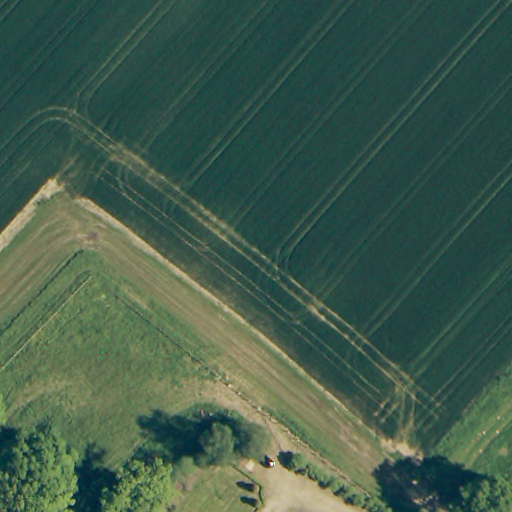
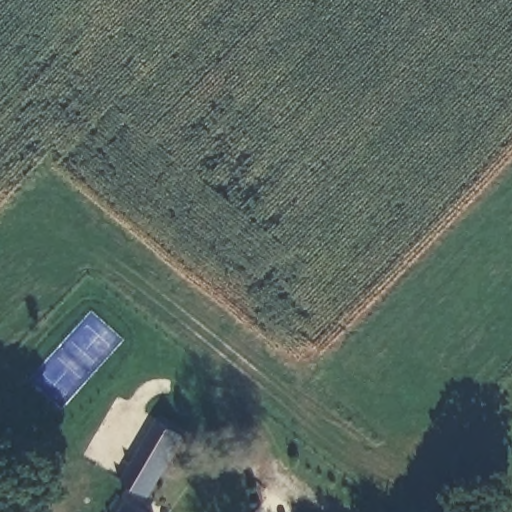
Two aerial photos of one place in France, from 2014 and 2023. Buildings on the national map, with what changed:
new [(124,481),(159,421),(187,435),(150,494),(124,481)]
demolished [(141,512),(107,512),(117,497),(141,512)]
new [(152,512),(118,512),(127,497),(152,512)]

